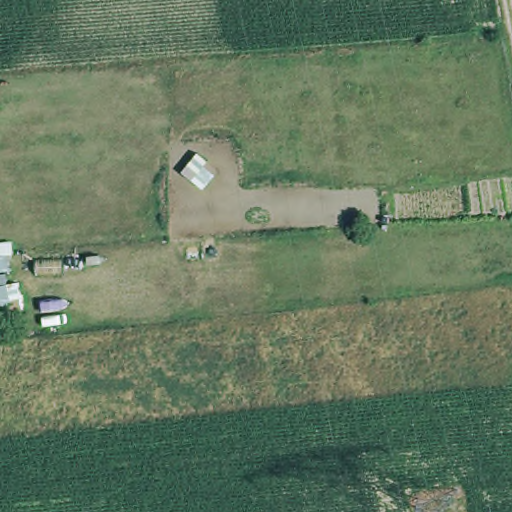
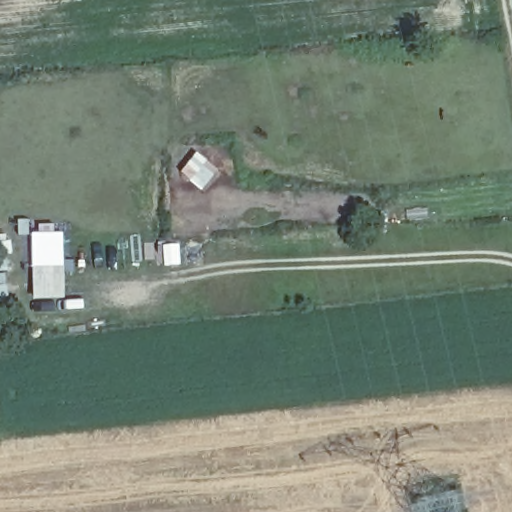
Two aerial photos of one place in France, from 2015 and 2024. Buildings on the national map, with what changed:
new [(58,251),(58,265),(65,267),(67,299),(35,304),(32,248),(58,251)]

